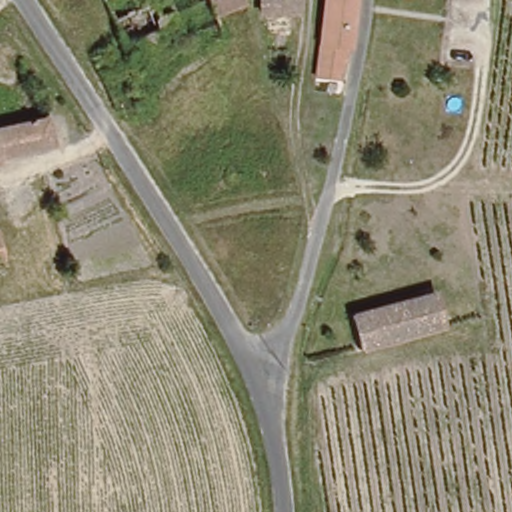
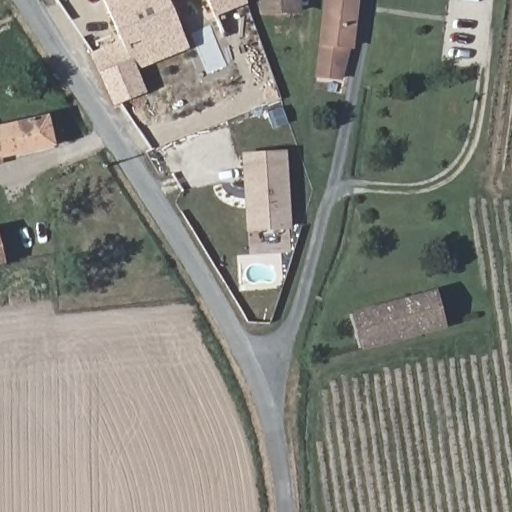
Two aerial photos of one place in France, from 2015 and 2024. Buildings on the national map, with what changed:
new [(90,56),(121,43),(104,0),(167,0),(159,4),(163,11),(124,27),(150,95),(119,112),(90,56)]
demolished [(95,5),(105,0),(233,0),(237,15),(211,26),(227,60),(204,70),(199,58),(184,64),(177,48),(125,71),(112,44),(95,5)]
new [(140,68),(124,27),(163,11),(159,4),(167,0),(169,0),(189,48),(140,68)]
new [(249,4),(214,18),(207,0),(247,0),(249,4)]
unchanged [(295,18),(282,18),(282,37),(261,37),(261,0),(295,0),(295,18)]
unchanged [(325,0),(352,0),(343,79),(317,76),(325,0)]
demolished [(145,113),(117,127),(110,110),(105,112),(91,86),(125,71),(145,113)]
unchanged [(50,146),(0,159),(0,127),(43,116),(50,146)]
new [(289,156),(294,228),(246,232),(245,158),(289,156)]
unchanged [(0,230),(22,224),(31,253),(0,261),(0,230)]
unchanged [(439,298),(445,324),(359,344),(353,318),(439,298)]

